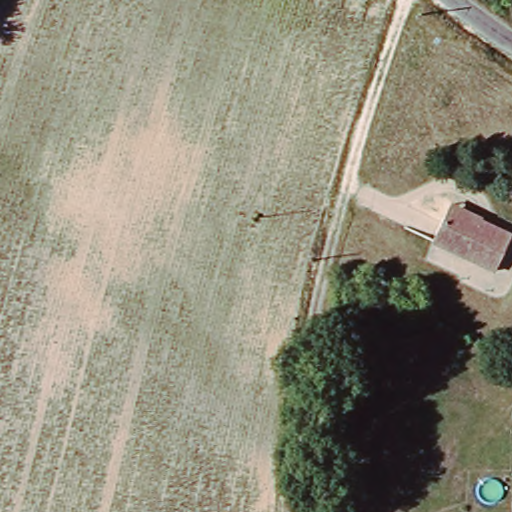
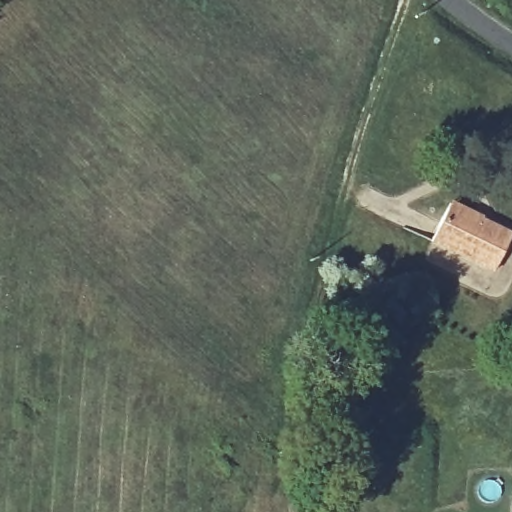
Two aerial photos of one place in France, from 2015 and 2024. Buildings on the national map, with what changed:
unchanged [(510,233),(492,268),(428,234),(446,206),(478,224),(481,217),(510,233)]

